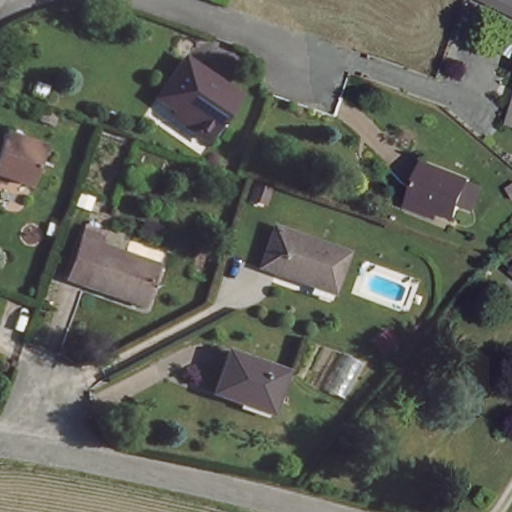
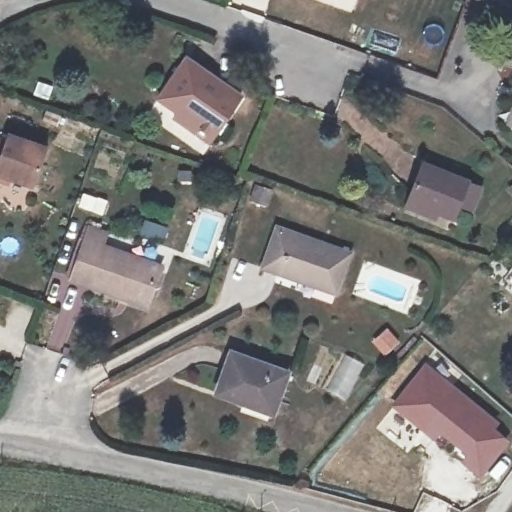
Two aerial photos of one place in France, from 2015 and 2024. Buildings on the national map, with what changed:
new [(490,0),(512,0),(512,11),(490,0)]
unchanged [(195,132),(179,121),(183,114),(166,102),(190,64),(207,75),(206,81),(223,94),(227,87),(244,99),(220,137),(215,145),(195,132)]
unchanged [(0,132),(10,135),(13,126),(53,140),(38,179),(18,173),(13,179),(0,175),(0,132)]
unchanged [(410,209),(413,199),(425,161),(475,178),(461,217),(442,209),(440,218),(410,209)]
unchanged [(67,278),(87,225),(105,231),(100,245),(160,264),(148,303),(67,278)]
unchanged [(305,279),(270,268),(283,225),(352,248),(342,284),(340,290),(305,279)]
unchanged [(247,401),(223,393),(236,349),(292,368),(282,400),(278,410),(247,401)]
new [(510,430),(478,471),(457,457),(465,448),(440,427),(432,437),(392,405),(423,366),(510,430)]

